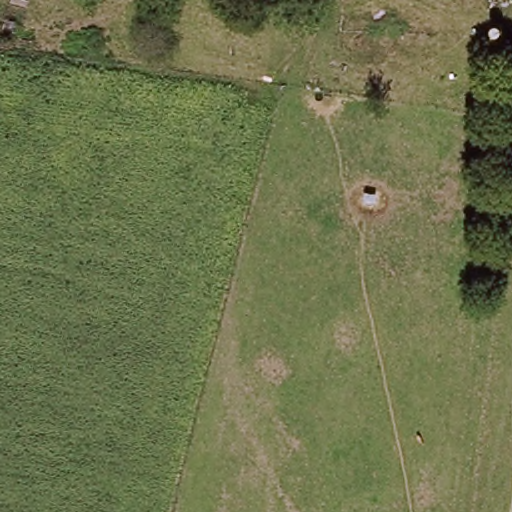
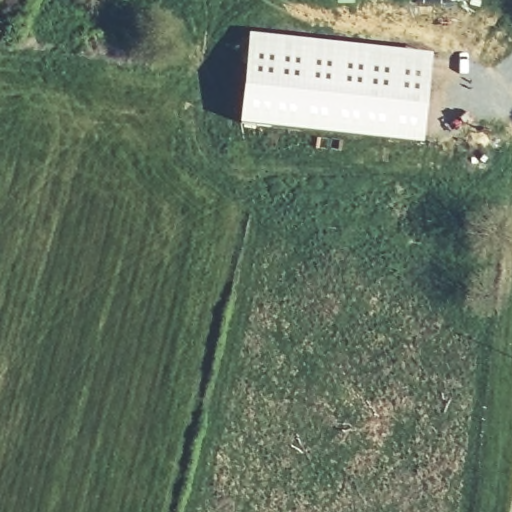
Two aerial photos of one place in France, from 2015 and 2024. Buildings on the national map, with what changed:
new [(422,147),(239,125),(248,35),(431,56),(422,147)]

